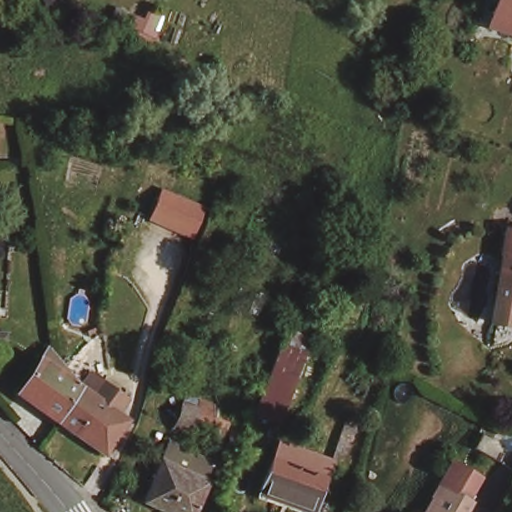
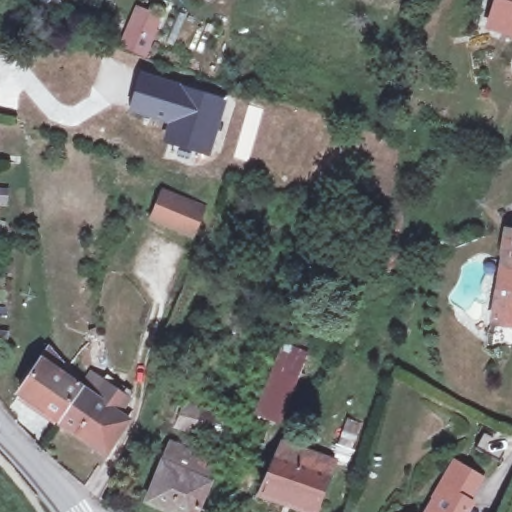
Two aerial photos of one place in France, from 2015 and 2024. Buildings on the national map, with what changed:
unchanged [(491,0),(512,0),(512,31),(503,28),(485,24),(489,8),(491,0)]
new [(121,45),(137,6),(164,19),(147,59),(121,45)]
new [(210,157),(163,143),(169,124),(130,110),(142,73),(227,99),(210,157)]
unchanged [(25,154),(0,149),(0,115),(19,118),(25,154)]
unchanged [(212,207),(200,240),(151,223),(167,192),(212,207)]
unchanged [(510,319),(490,314),(509,220),(512,221),(512,311),(510,319)]
unchanged [(249,411),(255,397),(287,331),(308,343),(270,423),(249,411)]
unchanged [(80,377),(78,381),(92,390),(102,377),(127,393),(119,408),(127,414),(104,447),(55,414),(16,387),(47,343),(61,357),(80,377)]
unchanged [(177,422),(187,402),(199,408),(190,428),(177,422)]
unchanged [(232,434),(240,437),(232,456),(225,452),(232,434)]
unchanged [(487,439),(510,451),(502,466),(479,454),(487,439)]
unchanged [(188,512),(179,512),(167,506),(146,495),(161,459),(169,442),(194,456),(186,472),(200,479),(188,512)]
unchanged [(262,487),(282,443),(336,461),(317,506),(267,489),(262,487)]
unchanged [(422,511),(439,484),(451,462),(478,478),(465,499),(468,501),(461,512),(419,512),(422,511)]

